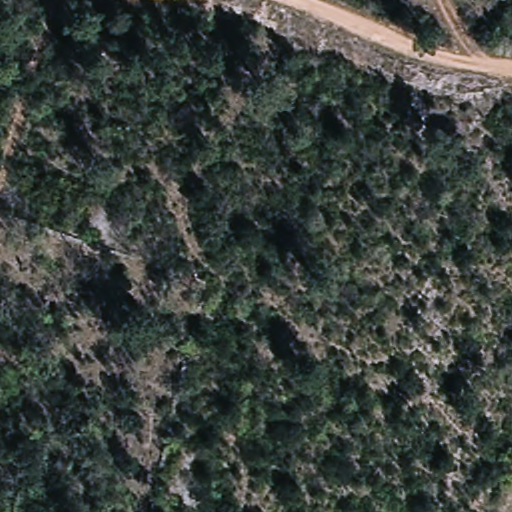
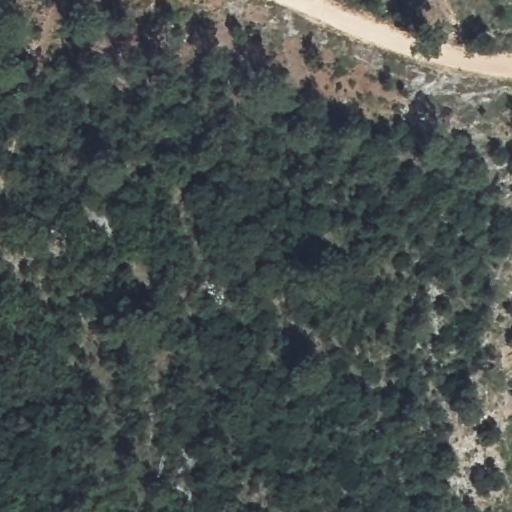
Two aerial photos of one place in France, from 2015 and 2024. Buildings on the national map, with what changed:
[]

